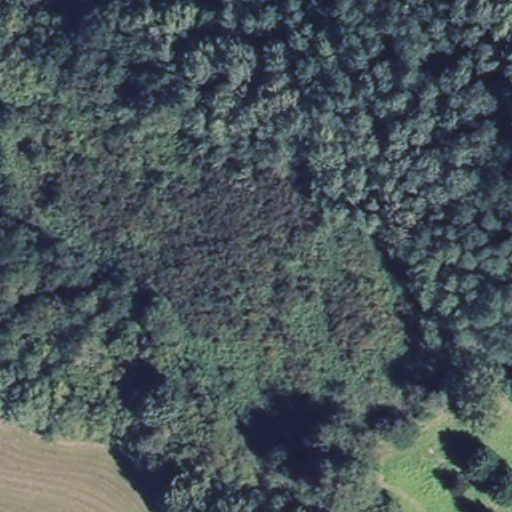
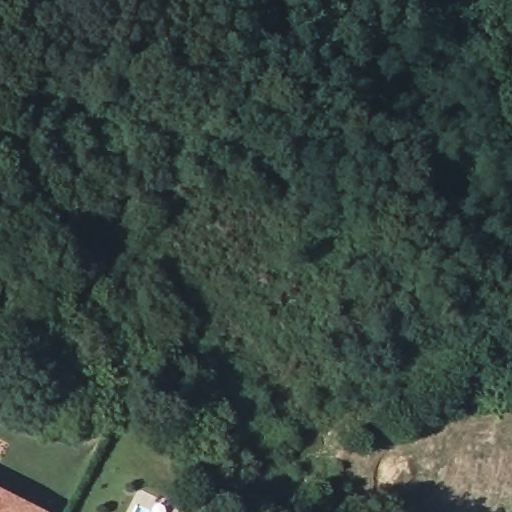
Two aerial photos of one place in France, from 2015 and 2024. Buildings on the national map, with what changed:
new [(0,512),(0,488),(47,512),(0,512)]

